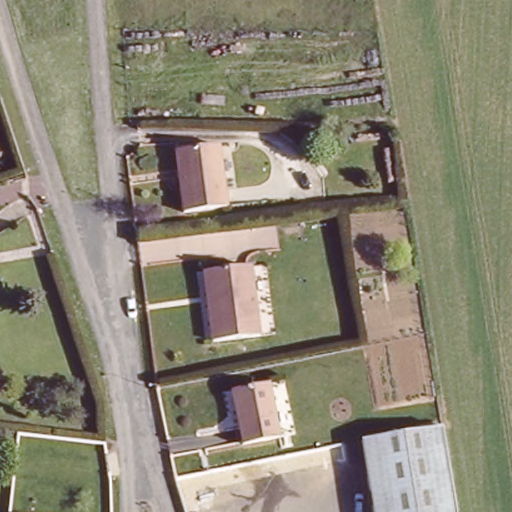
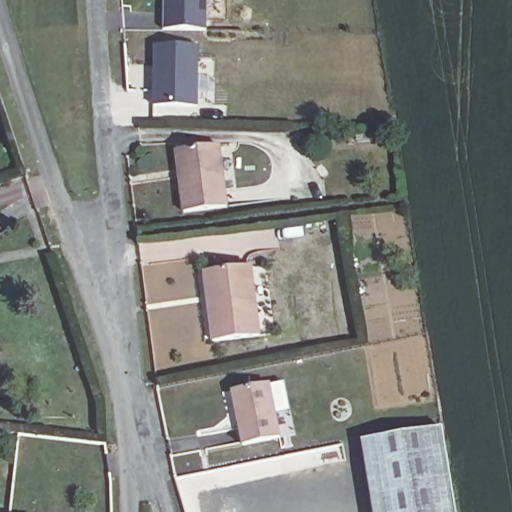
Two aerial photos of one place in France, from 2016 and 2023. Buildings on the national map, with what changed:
new [(206,0),(205,30),(164,29),(164,0),(206,0)]
new [(155,46),(197,47),(197,107),(152,106),(155,46)]
unchanged [(227,206),(184,212),(180,176),(176,149),(179,149),(219,144),(227,206)]
unchanged [(250,265),(259,335),(212,341),(208,305),(207,295),(204,271),(250,265)]
unchanged [(274,382),(285,437),(247,445),(237,389),(274,382)]
unchanged [(362,439),(442,426),(456,512),(374,512),(362,439)]

